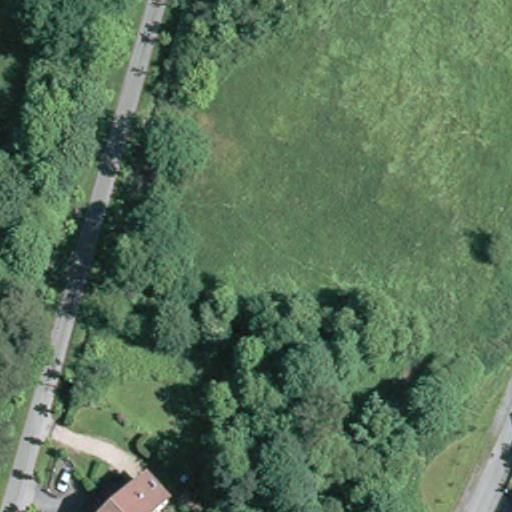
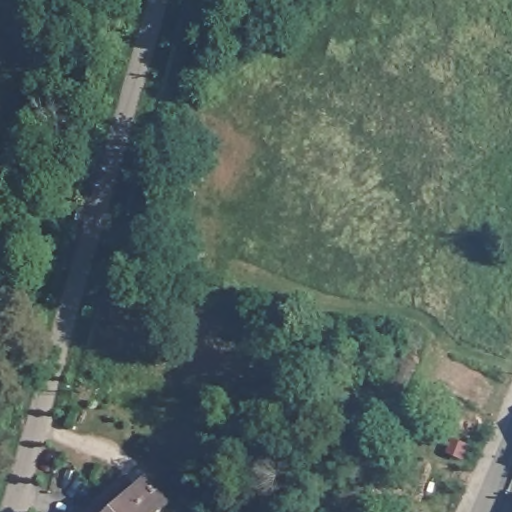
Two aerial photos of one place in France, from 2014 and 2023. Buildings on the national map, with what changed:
unchanged [(139,486),(151,476),(173,499),(158,512),(124,512),(107,492),(128,474),(139,486)]
unchanged [(124,512),(86,512),(107,492),(124,512)]

